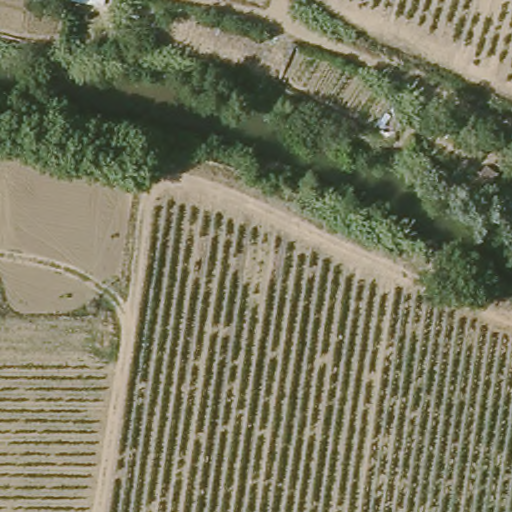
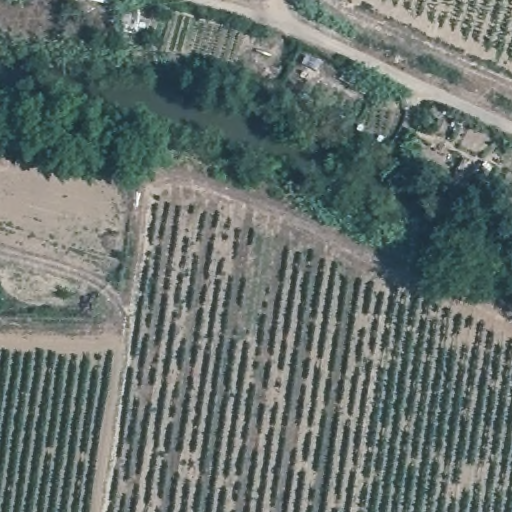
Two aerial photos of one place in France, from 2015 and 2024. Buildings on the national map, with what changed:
unchanged [(160,5),(158,34),(135,30),(136,4),(160,5)]

